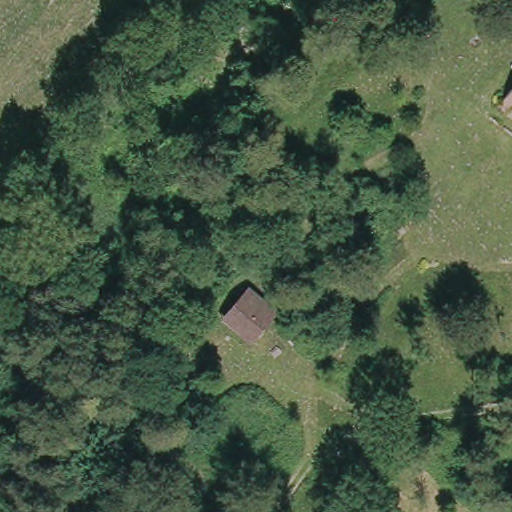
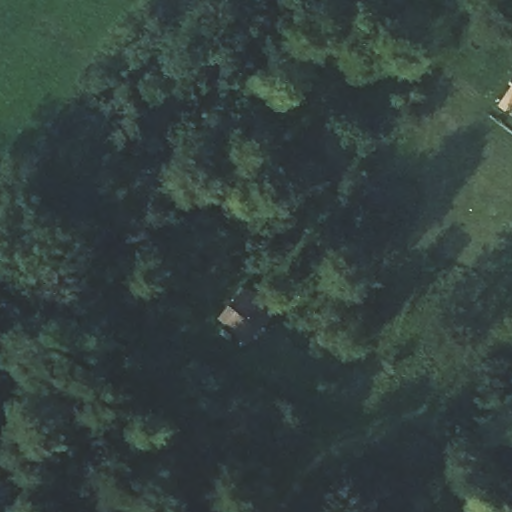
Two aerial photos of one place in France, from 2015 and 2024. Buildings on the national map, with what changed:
unchanged [(499,92),(512,75),(512,102),(499,92)]
unchanged [(244,279),(275,306),(247,338),(218,310),(244,279)]

